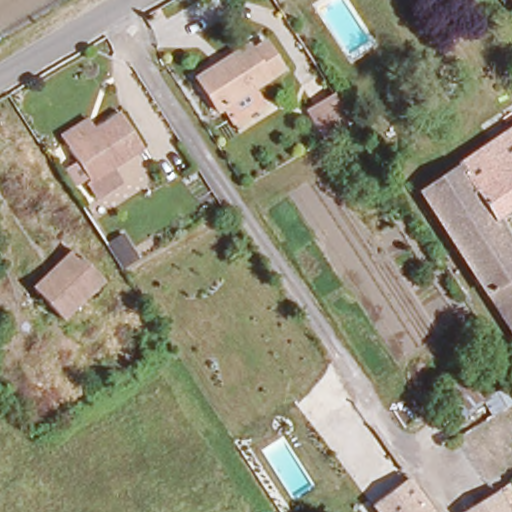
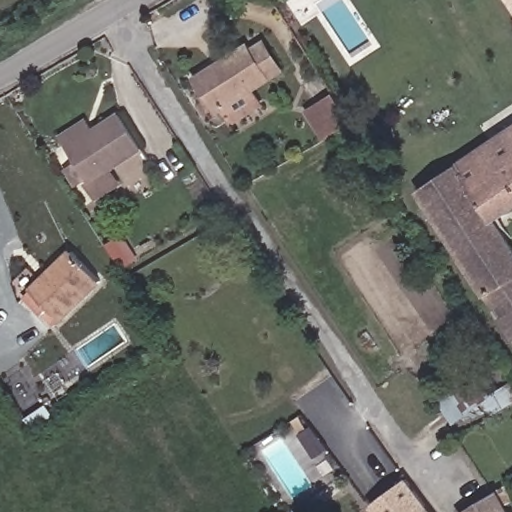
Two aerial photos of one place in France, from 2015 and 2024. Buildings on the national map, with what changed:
unchanged [(231,115),(222,100),(217,103),(196,69),(246,38),(250,44),(263,36),(281,65),(248,85),(257,100),(231,115)]
unchanged [(313,127),(299,105),(302,91),(321,80),(340,110),(313,127)]
unchanged [(74,156),(64,142),(57,132),(85,114),(91,124),(110,110),(119,104),(144,139),(133,146),(117,158),(128,172),(100,192),(87,175),(78,180),(65,162),(74,156)]
unchanged [(512,247),(512,336),(419,189),(512,126),(512,204),(493,217),(512,247)]
unchanged [(117,229),(130,250),(117,257),(104,236),(117,229)]
unchanged [(29,281),(71,245),(97,276),(57,311),(29,281)]
unchanged [(435,512),(380,512),(372,502),(406,478),(408,477),(435,512)]
unchanged [(464,510),(467,507),(499,488),(506,483),(509,490),(503,494),(512,511),(512,512),(465,512),(464,510)]

